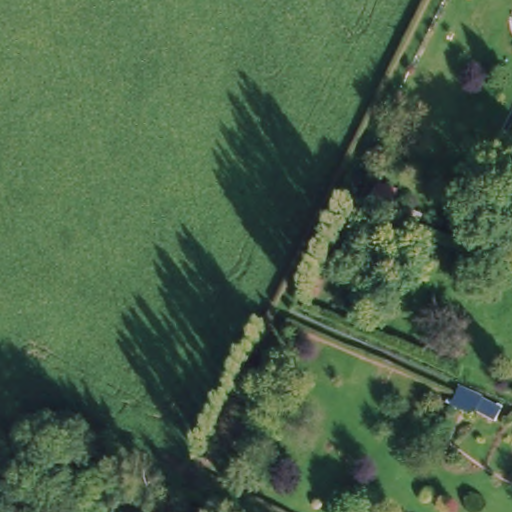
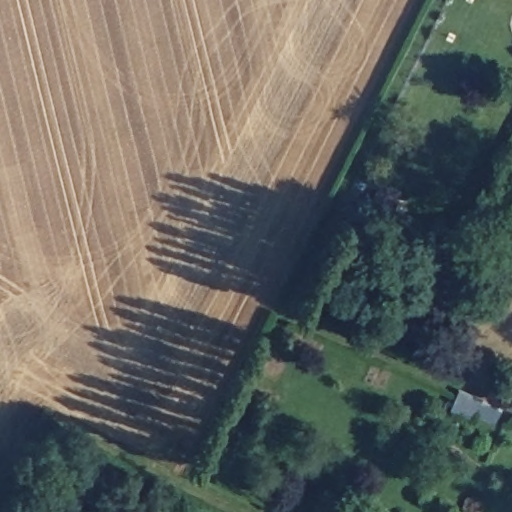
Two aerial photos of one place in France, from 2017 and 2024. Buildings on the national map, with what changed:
unchanged [(498,407),(492,416),(475,405),(471,412),(450,402),(458,384),(480,394),(498,407)]

